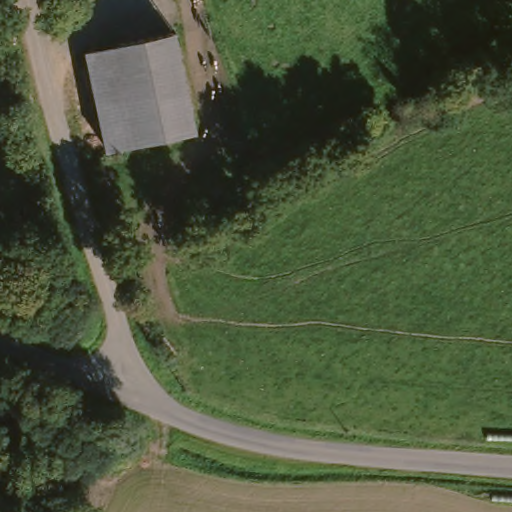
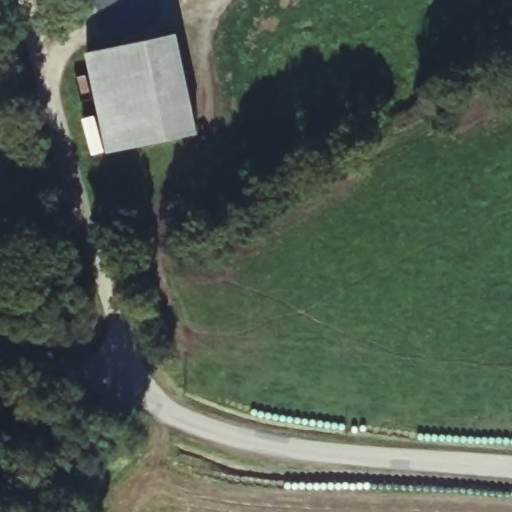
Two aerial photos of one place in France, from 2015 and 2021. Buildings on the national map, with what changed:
unchanged [(88,56),(178,32),(204,132),(114,154),(88,56)]

